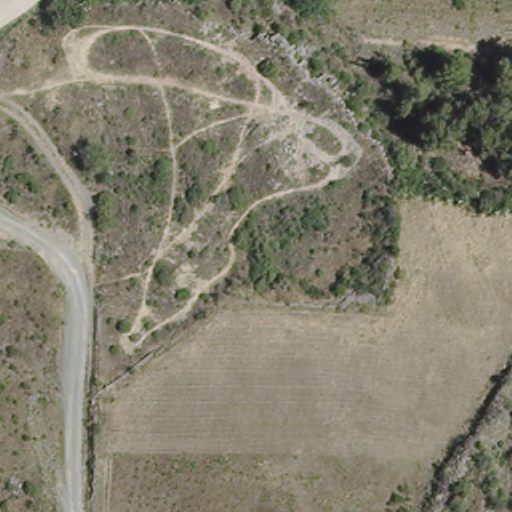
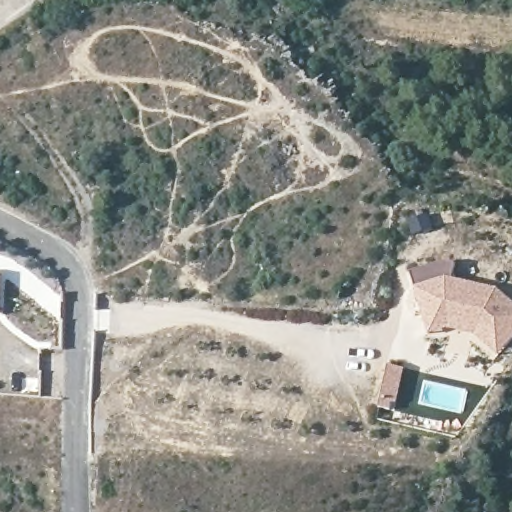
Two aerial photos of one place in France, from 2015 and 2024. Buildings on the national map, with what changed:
new [(455,263),(453,279),(499,289),(512,301),(512,342),(500,356),(475,333),(450,327),(430,333),(411,272),(444,262),(455,263)]
new [(1,275),(0,305),(0,274),(1,275)]

